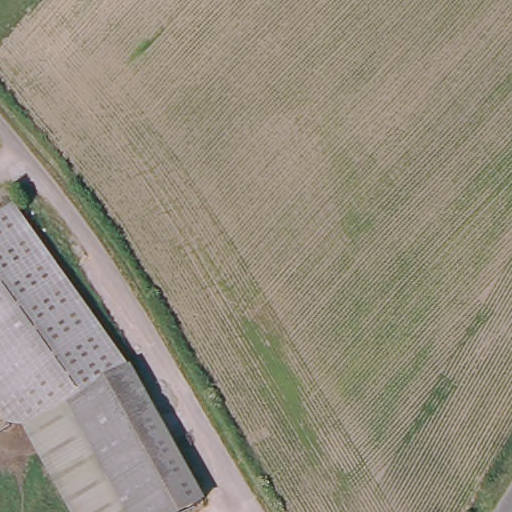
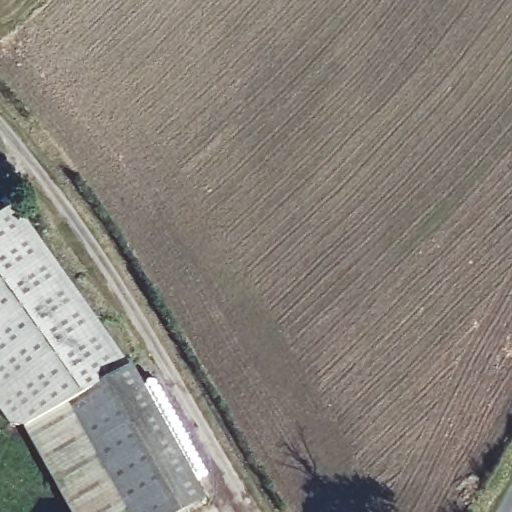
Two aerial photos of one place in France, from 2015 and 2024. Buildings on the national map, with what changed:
unchanged [(0,396),(0,214),(30,194),(141,365),(34,416),(11,413),(0,396)]
unchanged [(141,365),(204,499),(177,512),(79,512),(34,416),(141,365)]

